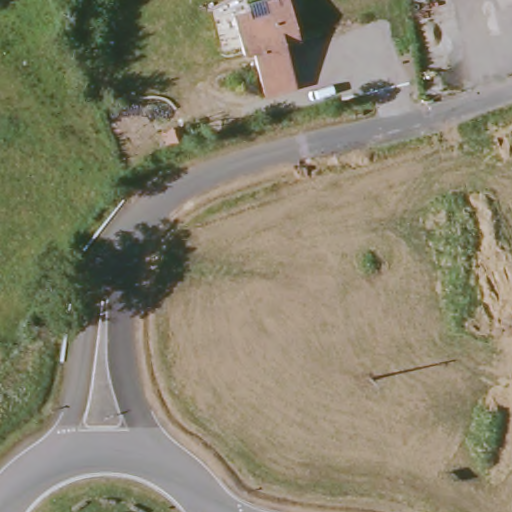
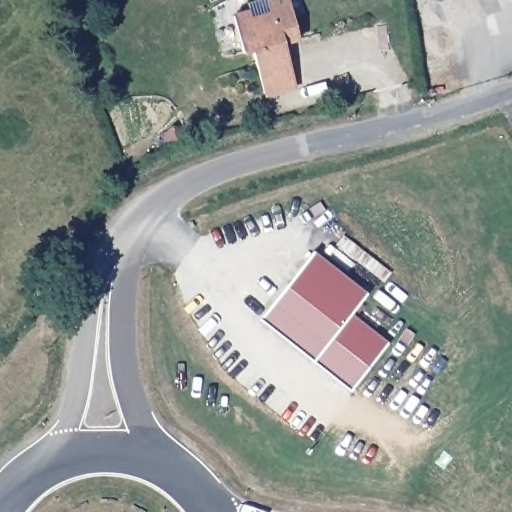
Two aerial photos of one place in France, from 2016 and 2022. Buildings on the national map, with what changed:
unchanged [(285,44),(290,88),(258,92),(253,48),(243,49),(239,11),(255,9),(254,0),(274,0),(274,2),(285,0),(296,0),(300,42),(285,44)]
new [(368,295),(352,314),(387,345),(345,392),(257,315),(316,249),(368,295)]

